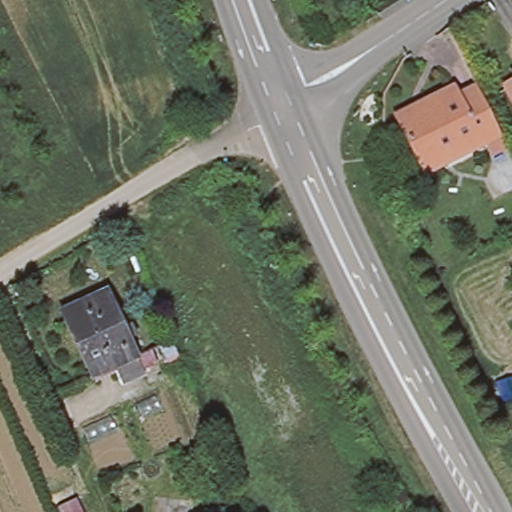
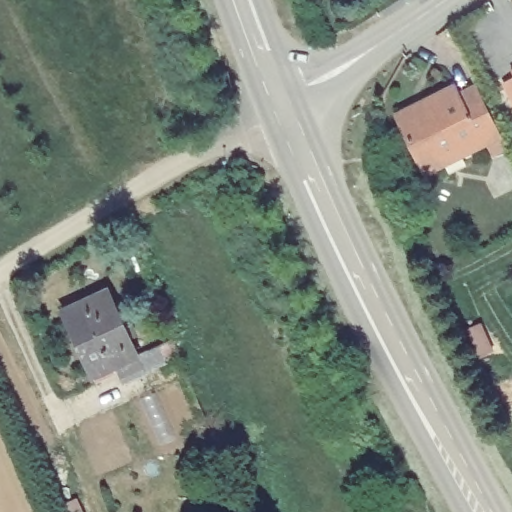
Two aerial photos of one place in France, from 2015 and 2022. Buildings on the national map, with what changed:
unchanged [(475,145),(471,135),(433,150),(436,158),(417,166),(396,115),(392,105),(418,95),(449,83),(452,91),(473,83),(499,135),(475,145)]
unchanged [(131,359),(86,378),(58,314),(103,295),(131,359)]

